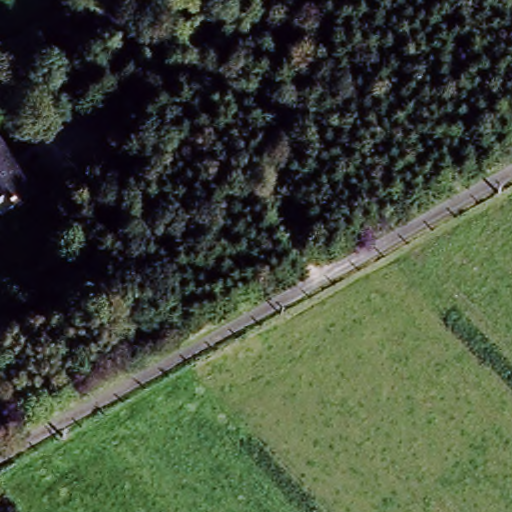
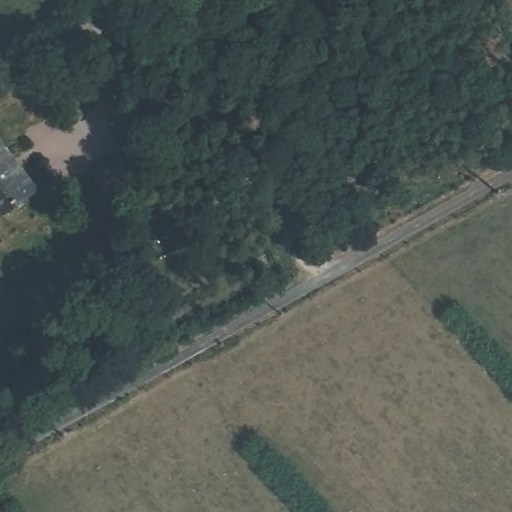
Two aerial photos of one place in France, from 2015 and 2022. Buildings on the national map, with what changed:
unchanged [(29,185),(0,204),(0,140),(29,185)]

